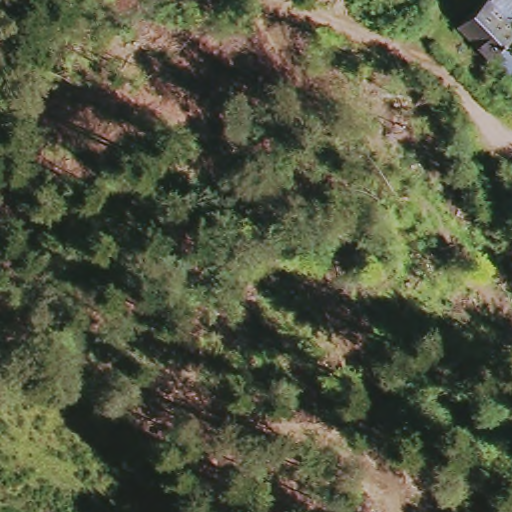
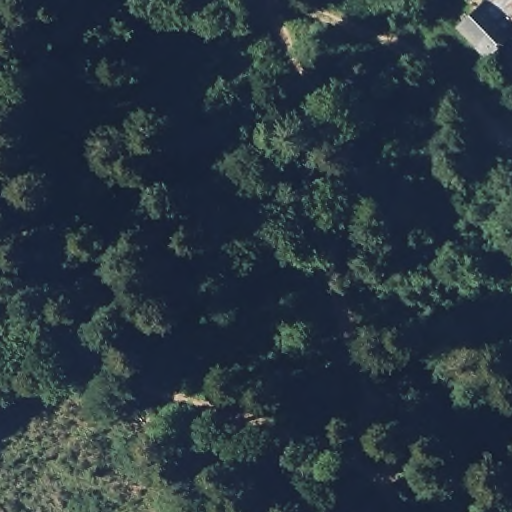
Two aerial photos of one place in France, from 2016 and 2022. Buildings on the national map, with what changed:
unchanged [(460,21),(485,0),(512,0),(512,78),(507,82),(460,21)]

